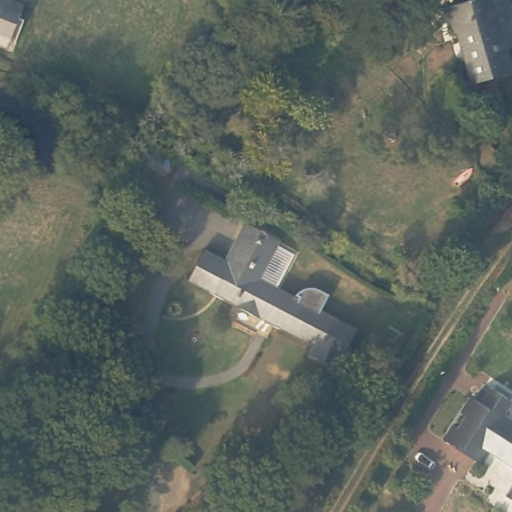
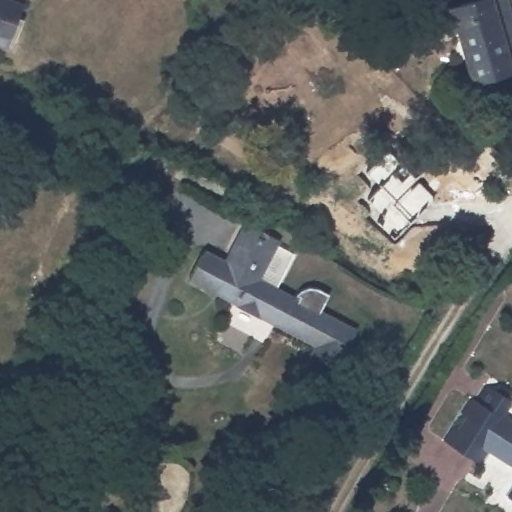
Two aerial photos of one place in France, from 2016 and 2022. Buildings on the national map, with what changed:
unchanged [(20,5),(7,41),(0,38),(0,0),(5,0),(20,5)]
unchanged [(505,81),(472,93),(456,41),(446,44),(440,20),(476,8),(474,0),(496,0),(509,43),(512,53),(512,56),(498,61),(505,81)]
unchanged [(177,163),(172,175),(149,164),(154,151),(177,163)]
unchanged [(255,209),(247,223),(231,215),(240,201),(255,209)]
unchanged [(280,228),(276,232),(267,225),(271,220),(280,228)]
unchanged [(323,312),(319,320),(349,336),(331,369),(310,358),(316,348),(271,326),(240,310),(241,307),(236,304),(190,280),(203,256),(229,270),(235,257),(231,254),(243,231),(272,247),(271,249),(288,259),(270,294),(282,300),(286,292),(323,312)]
unchanged [(110,292),(102,312),(90,308),(99,287),(110,292)]
unchanged [(475,465),(438,442),(465,401),(512,432),(512,470),(484,452),(475,465)]
unchanged [(512,483),(512,502),(503,496),(512,483)]

